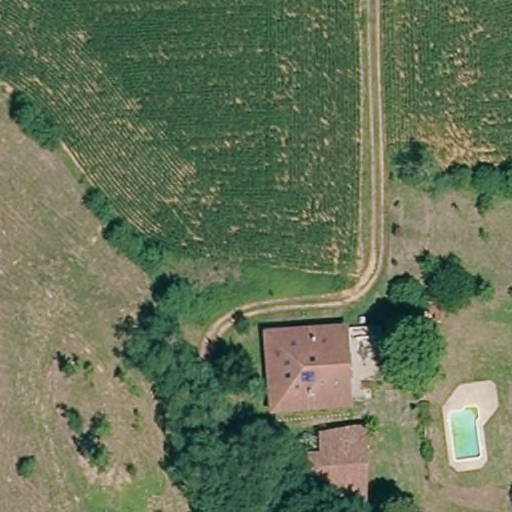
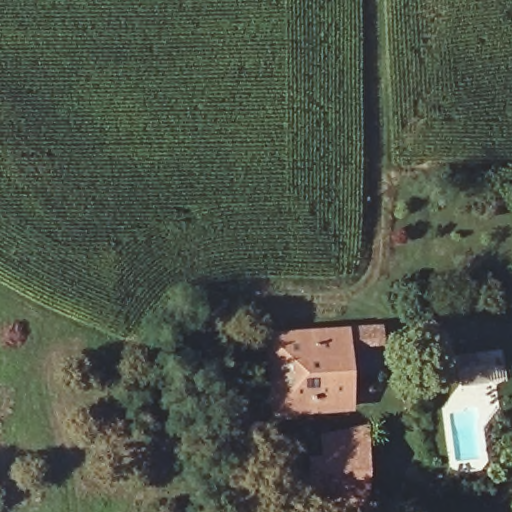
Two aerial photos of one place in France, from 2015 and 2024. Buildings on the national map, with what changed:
unchanged [(351,407),(271,412),(271,375),(271,335),(347,329),(351,407)]
unchanged [(309,512),(310,460),(321,460),(321,440),(366,441),(365,512),(309,512)]

